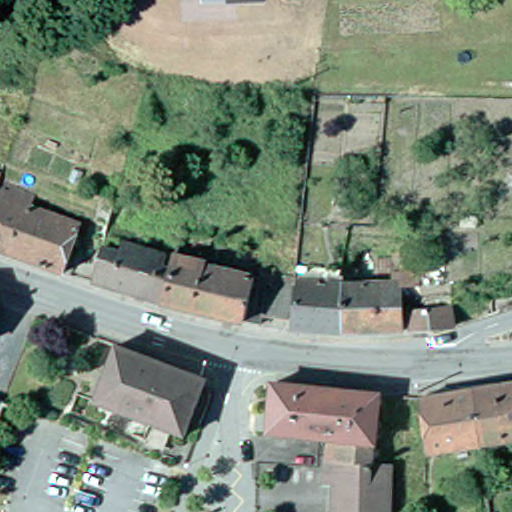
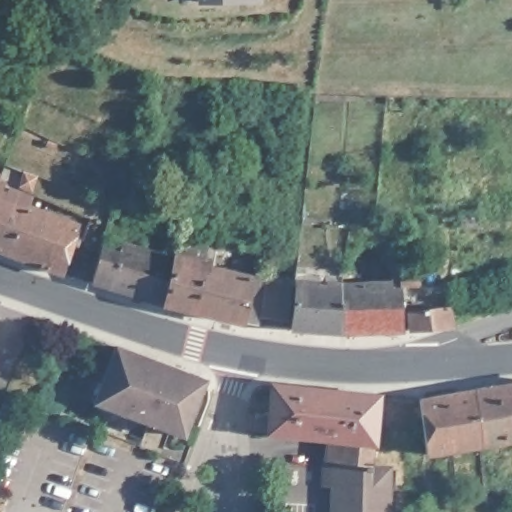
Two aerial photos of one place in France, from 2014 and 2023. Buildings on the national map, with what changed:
unchanged [(198,0),(264,0),(264,1),(198,3),(198,0)]
unchanged [(0,250),(0,179),(9,182),(8,187),(30,196),(26,207),(76,225),(59,272),(0,250)]
unchanged [(100,222),(106,201),(119,204),(116,219),(114,225),(100,222)]
unchanged [(111,254),(114,241),(118,242),(121,226),(158,234),(157,242),(168,244),(154,302),(85,282),(93,249),(111,254)]
unchanged [(258,272),(288,276),(287,277),(283,317),(253,313),(251,325),(245,323),(154,302),(168,244),(169,237),(201,245),(197,264),(251,277),(258,278),(258,272)]
unchanged [(251,263),(251,256),(259,257),(259,265),(251,263)]
unchanged [(395,329),(385,330),(343,332),(334,332),(333,299),(333,282),(331,265),(351,263),(351,281),(374,280),(374,257),(384,257),(393,257),(393,272),(397,272),(412,271),(412,283),(403,284),(403,286),(404,297),(394,297),(394,314),(395,329)]
unchanged [(333,299),(334,332),(282,326),(283,317),(287,277),(333,282),(333,299)]
unchanged [(443,306),(444,325),(401,329),(399,309),(443,306)]
unchanged [(179,431),(144,417),(91,396),(111,338),(201,372),(184,417),(179,431)]
unchanged [(470,382),(488,380),(506,377),(512,377),(512,431),(478,437),(470,382)]
unchanged [(261,427),(264,378),(366,388),(369,388),(365,431),(362,458),(317,452),(317,447),(318,433),(261,427)]
unchanged [(424,447),(415,392),(418,391),(470,382),(478,437),(424,447)]
unchanged [(246,425),(247,407),(257,408),(256,426),(246,425)]
unchanged [(380,512),(321,512),(321,485),(314,484),(317,452),(362,458),(362,462),(381,462),(380,512)]

